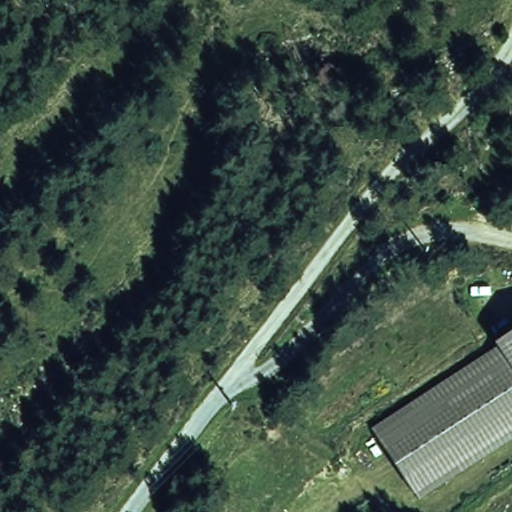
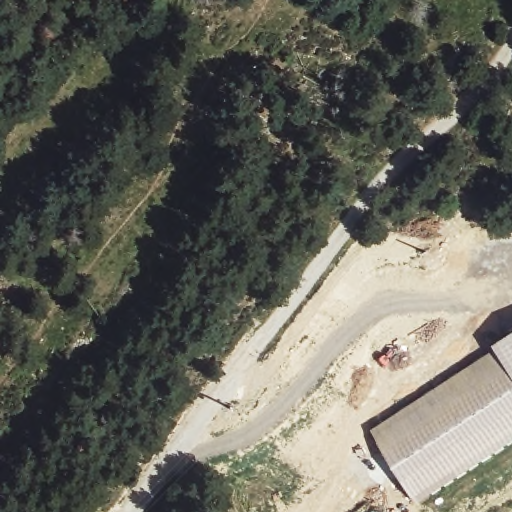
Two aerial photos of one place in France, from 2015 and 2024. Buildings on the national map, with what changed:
unchanged [(417,507),(367,430),(512,336),(512,447),(417,507)]

